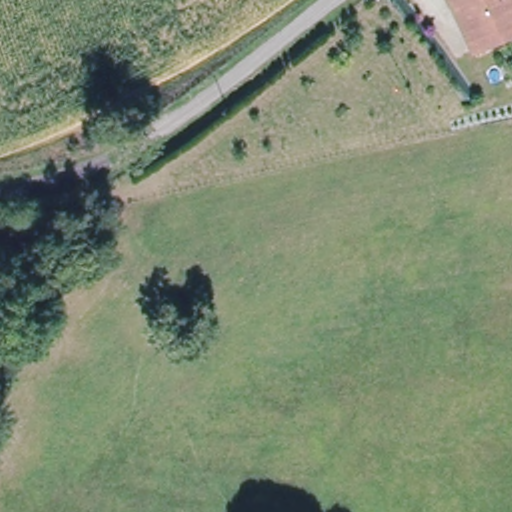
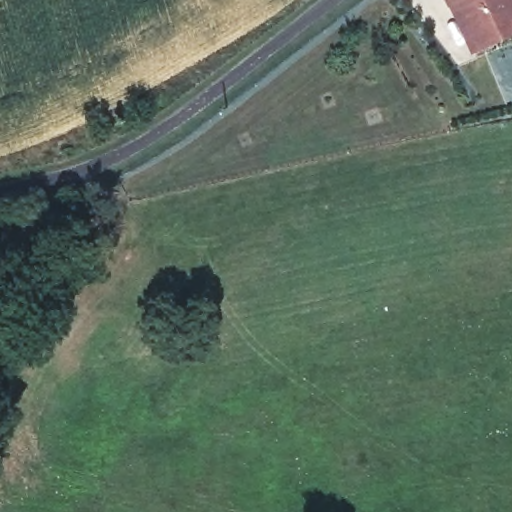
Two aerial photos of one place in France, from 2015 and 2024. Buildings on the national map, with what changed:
unchanged [(512,30),(476,43),(474,39),(461,0),(512,0),(512,30)]

